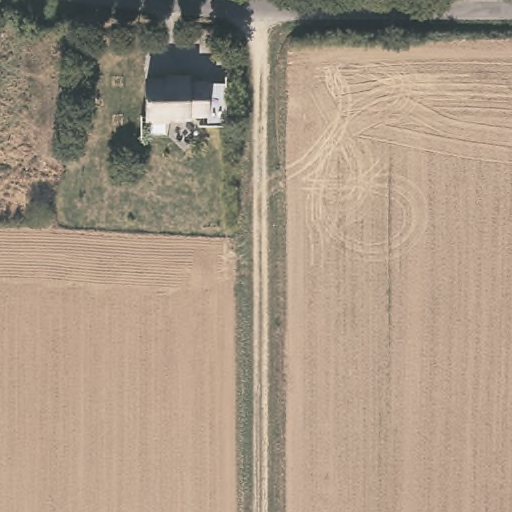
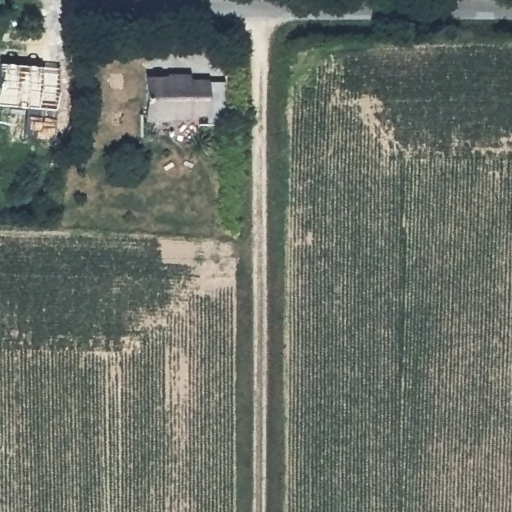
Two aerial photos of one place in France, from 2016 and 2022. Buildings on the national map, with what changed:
unchanged [(145,83),(166,83),(166,81),(187,80),(187,86),(206,86),(206,118),(188,118),(188,121),(167,121),(167,124),(145,124),(145,83)]

